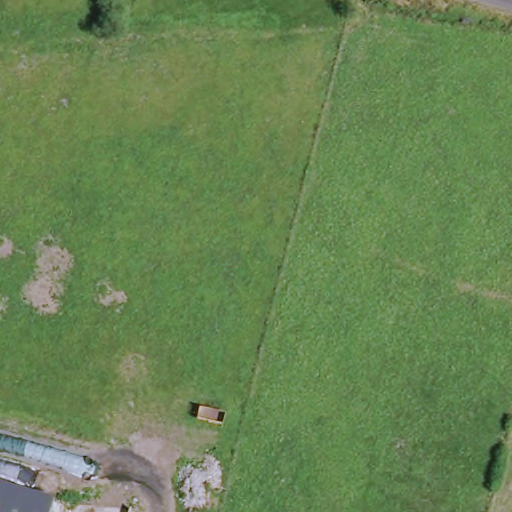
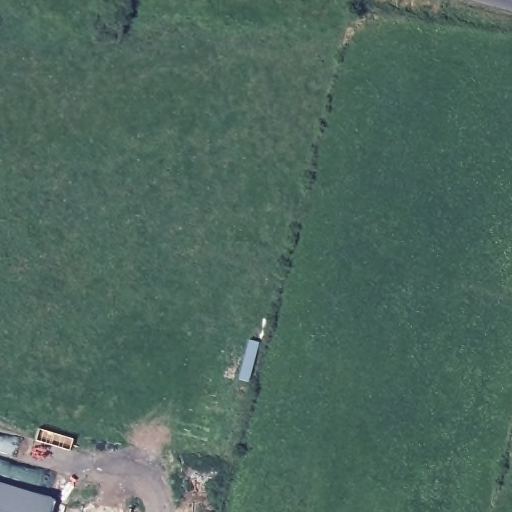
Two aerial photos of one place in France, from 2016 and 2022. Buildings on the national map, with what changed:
unchanged [(58,512),(0,512),(0,477),(62,497),(58,512)]

